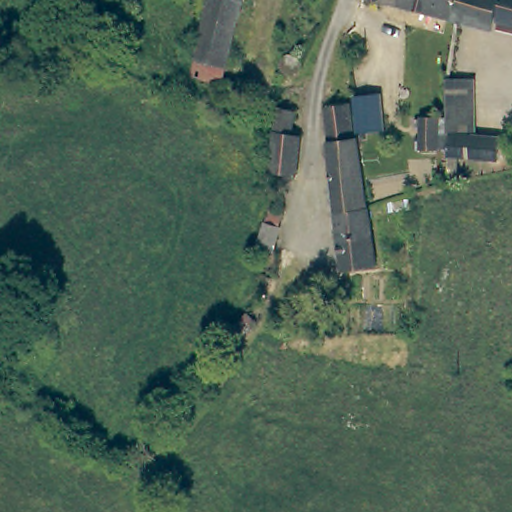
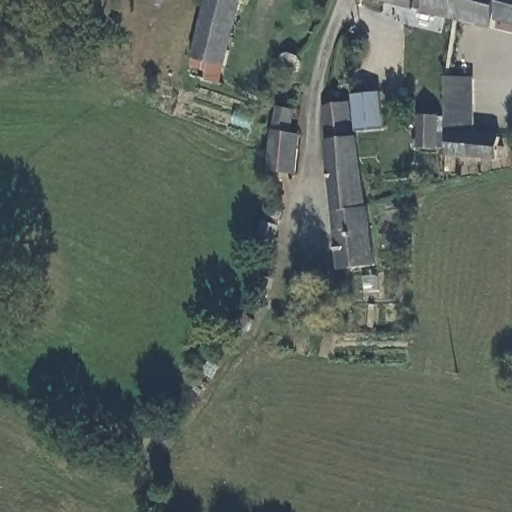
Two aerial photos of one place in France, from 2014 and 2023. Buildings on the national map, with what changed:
unchanged [(192,55),(212,0),(244,0),(220,65),(215,81),(187,70),(192,55)]
unchanged [(375,0),(398,0),(397,6),(375,0)]
unchanged [(397,6),(398,0),(459,0),(456,21),(397,6)]
unchanged [(495,32),(456,21),(459,0),(512,0),(512,25),(498,22),(495,32)]
unchanged [(124,9),(125,25),(92,26),(91,10),(124,9)]
unchanged [(281,64),(283,55),(290,50),(297,51),(302,55),(305,63),(301,69),(296,72),(291,73),(285,73),(281,64)]
unchanged [(272,74),(265,96),(241,89),(250,66),(272,74)]
unchanged [(476,78),(478,125),(454,125),(453,80),(476,78)]
unchanged [(395,134),(365,144),(353,96),(382,88),(395,134)]
unchanged [(321,109),(348,104),(353,140),(359,139),(367,208),(373,267),(338,272),(321,109)]
unchanged [(292,107),(293,133),(300,133),(298,173),(271,171),(271,126),(278,106),(292,107)]
unchanged [(445,114),(446,149),(425,149),(425,115),(445,114)]
unchanged [(505,143),(502,161),(454,154),(454,135),(505,143)]
unchanged [(265,205),(282,209),(273,248),(256,243),(265,205)]

